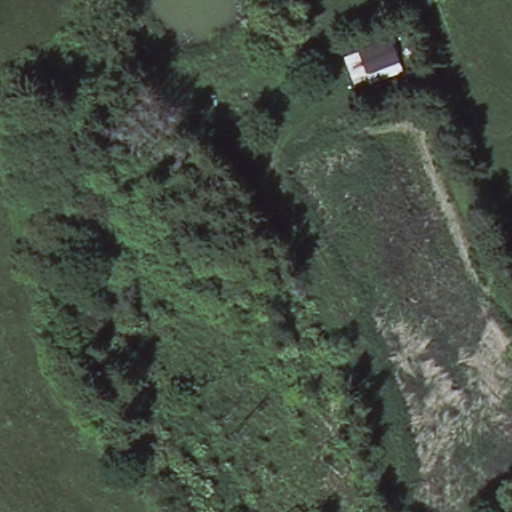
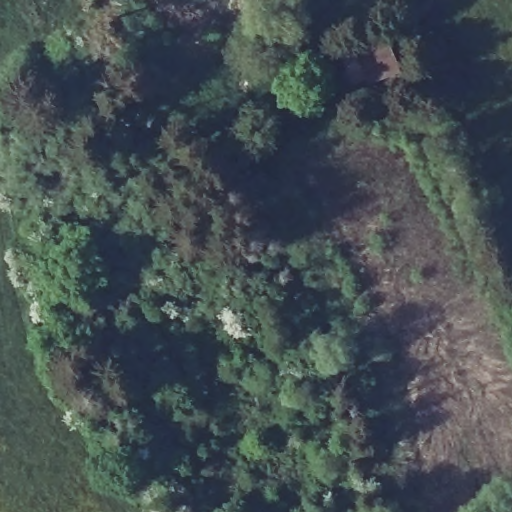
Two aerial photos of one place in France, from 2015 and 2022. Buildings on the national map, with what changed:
unchanged [(385,46),(393,65),(363,78),(355,59),(385,46)]

